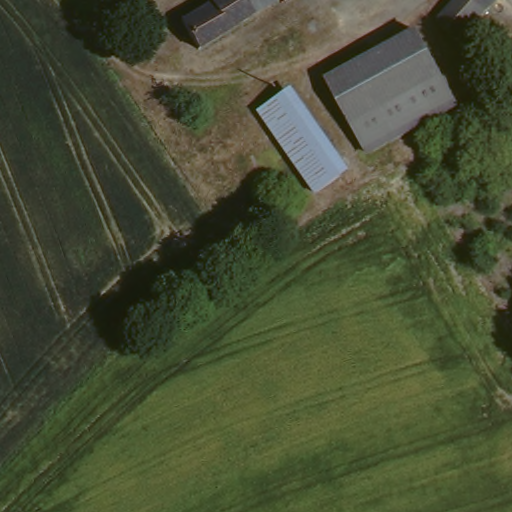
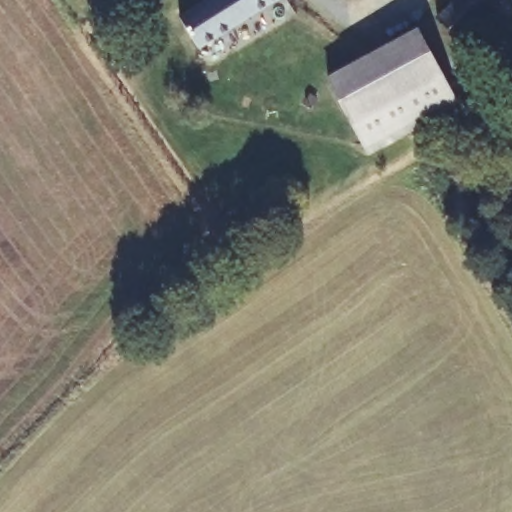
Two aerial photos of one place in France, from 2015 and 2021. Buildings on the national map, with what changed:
unchanged [(200,46),(182,17),(210,0),(274,0),(200,46)]
unchanged [(488,6),(461,35),(438,16),(449,4),(453,0),(495,0),(488,6)]
unchanged [(324,79),(413,30),(453,107),(364,154),(324,79)]
demolished [(259,104),(287,86),(304,110),(344,167),(318,185),(259,104)]

